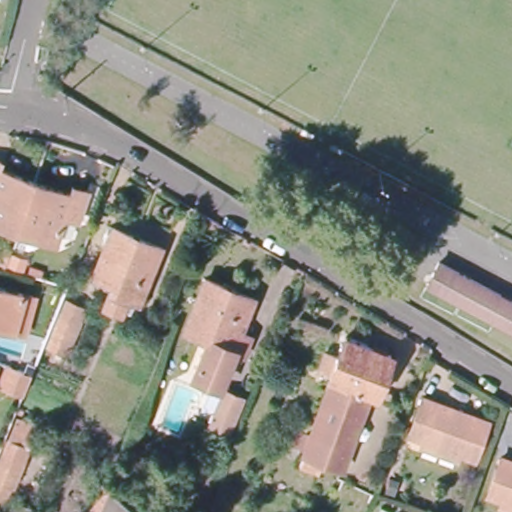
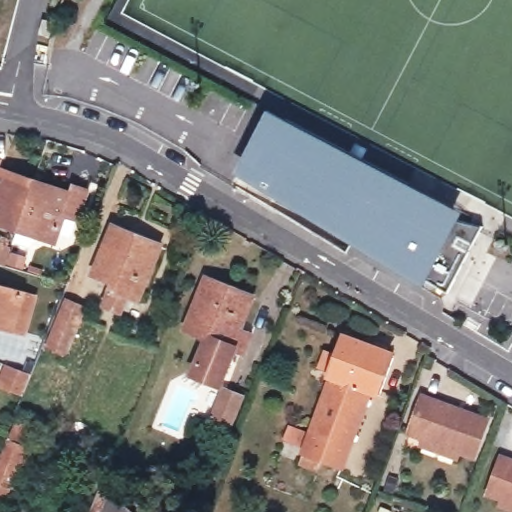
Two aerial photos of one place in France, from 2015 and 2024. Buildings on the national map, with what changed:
new [(479,225),(445,290),(423,283),(237,170),(268,107),(461,211),(479,225)]
unchanged [(32,250),(20,245),(25,231),(0,222),(0,161),(3,162),(2,169),(72,192),(74,185),(92,191),(81,221),(66,216),(59,236),(50,240),(42,237),(39,247),(32,250)]
unchanged [(140,297),(129,291),(122,309),(106,302),(116,280),(95,271),(113,223),(161,242),(140,297)]
demolished [(512,326),(427,281),(438,259),(512,297),(512,326)]
unchanged [(246,295),(234,328),(245,332),(238,350),(228,345),(213,383),(188,373),(204,335),(183,326),(202,277),(246,295)]
unchanged [(20,329),(8,325),(0,322),(0,283),(19,289),(32,292),(20,329)]
unchanged [(79,305),(77,310),(62,350),(46,344),(65,299),(79,305)]
unchanged [(322,468),(295,455),(298,445),(297,445),(329,367),(314,361),(319,350),(334,355),(343,333),(387,349),(372,389),(355,383),(327,458),(322,468)]
unchanged [(20,393),(6,388),(14,365),(29,370),(20,393)]
unchanged [(355,383),(372,389),(343,463),(327,458),(355,383)]
unchanged [(224,429),(207,421),(221,387),(237,395),(224,429)]
unchanged [(421,447),(424,438),(408,433),(423,395),(486,419),(473,457),(461,452),(457,460),(421,447)]
unchanged [(17,419),(35,426),(4,505),(0,503),(0,465),(17,419)]
unchanged [(216,450),(204,443),(210,429),(222,435),(216,450)]
unchanged [(501,498),(487,493),(500,455),(512,459),(512,511),(498,505),(501,498)]
unchanged [(116,488),(144,512),(106,512),(116,488)]

